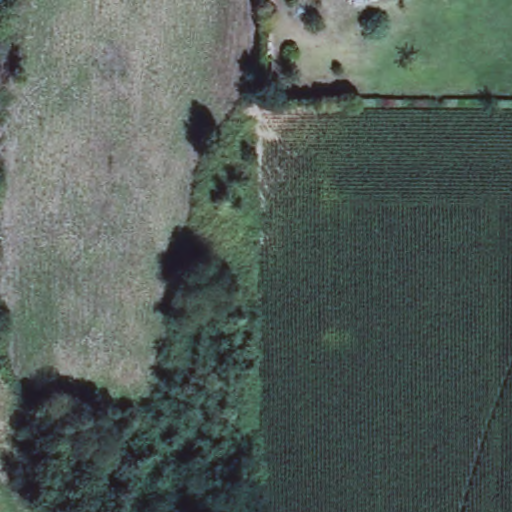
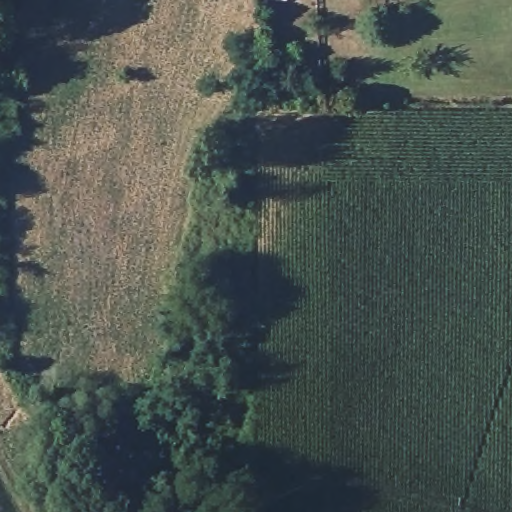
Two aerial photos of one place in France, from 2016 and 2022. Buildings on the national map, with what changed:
[]

